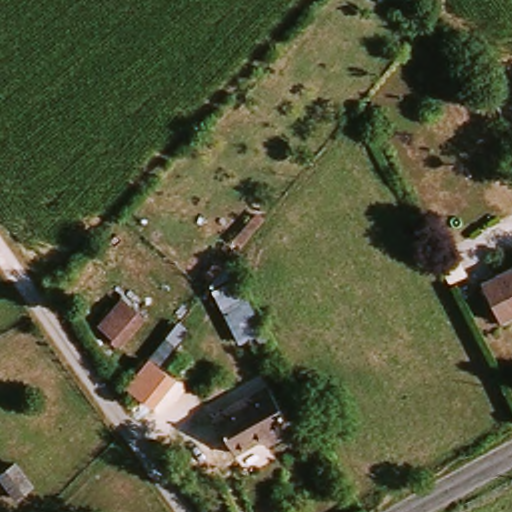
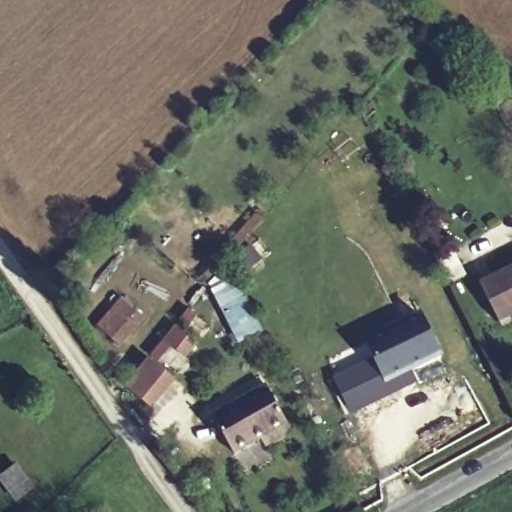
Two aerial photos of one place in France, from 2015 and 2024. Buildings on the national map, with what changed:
unchanged [(232,264),(261,334),(237,344),(209,287),(232,264)]
unchanged [(512,272),(512,318),(499,325),(480,288),(512,272)]
unchanged [(145,320),(120,349),(95,326),(121,296),(145,320)]
new [(332,379),(374,359),(363,338),(423,309),(445,356),(414,371),(419,382),(350,417),(332,379)]
unchanged [(175,381),(154,409),(127,388),(147,361),(175,381)]
unchanged [(257,436),(230,450),(213,418),(265,391),(282,422),(290,434),(263,449),(257,436)]

